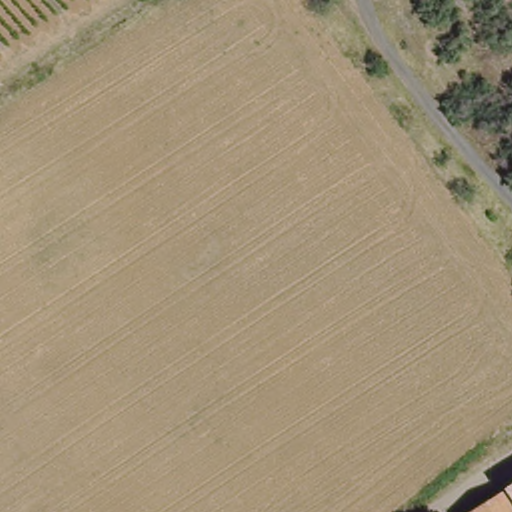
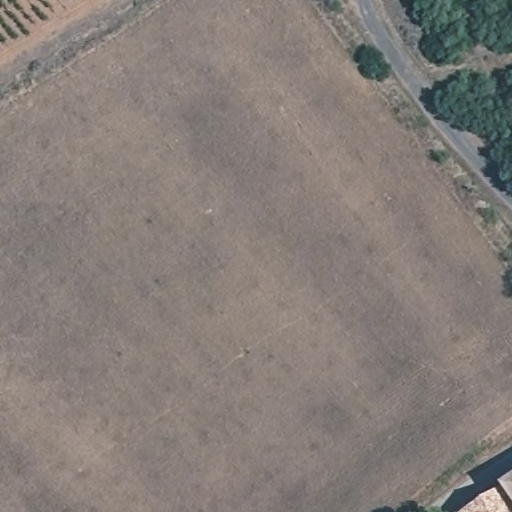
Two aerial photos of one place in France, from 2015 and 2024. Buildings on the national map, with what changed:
unchanged [(512,481),(512,512),(465,512),(502,487),(512,481)]

